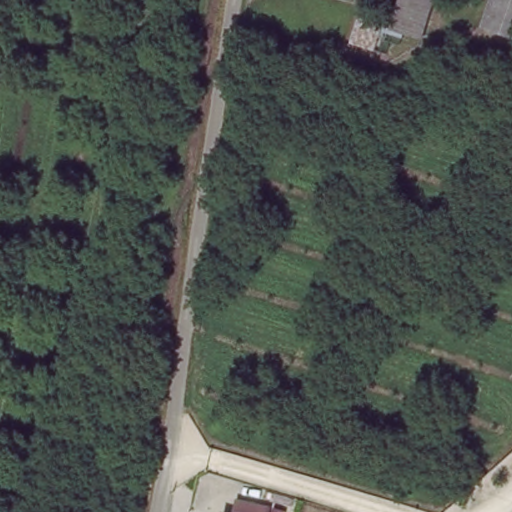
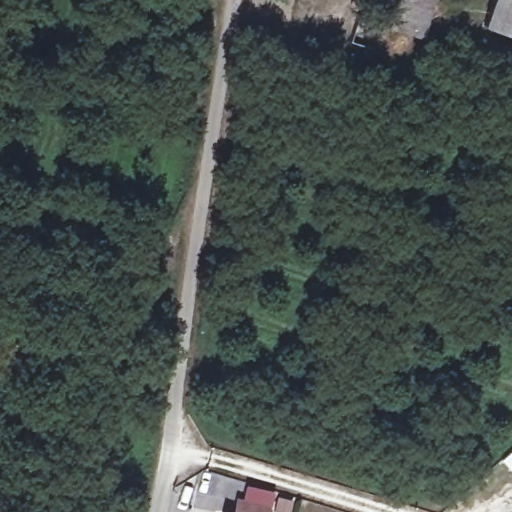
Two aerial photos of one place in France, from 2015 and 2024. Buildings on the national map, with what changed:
unchanged [(432,0),(438,2),(424,36),(395,26),(405,0),(432,0)]
unchanged [(512,0),(512,37),(486,27),(495,0),(512,0)]
unchanged [(375,51),(351,46),(361,22),(383,29),(375,51)]

